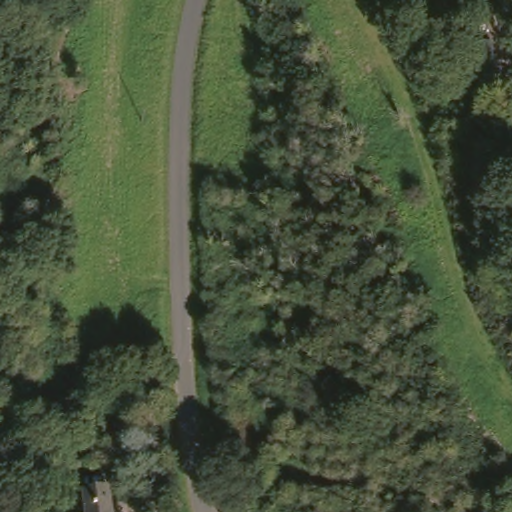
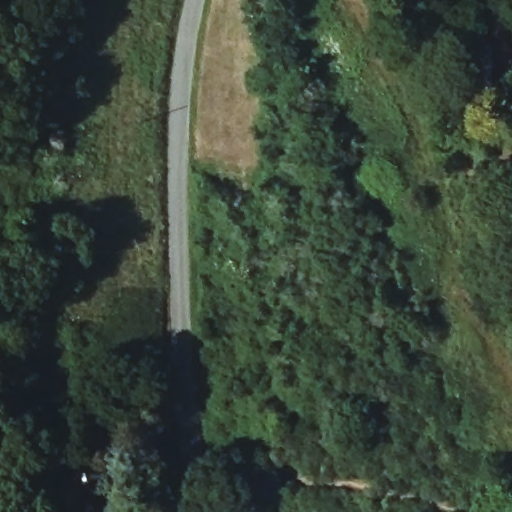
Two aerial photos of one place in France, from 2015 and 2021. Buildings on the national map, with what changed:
unchanged [(111,512),(87,512),(87,491),(110,491),(111,512)]

